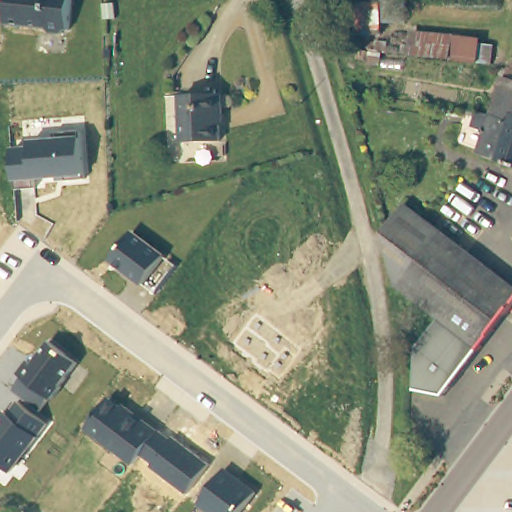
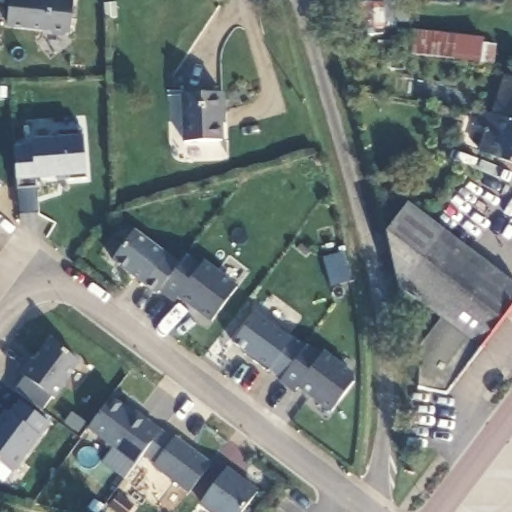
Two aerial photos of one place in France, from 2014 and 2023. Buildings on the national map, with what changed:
unchanged [(67,30),(6,23),(6,0),(70,0),(67,30)]
unchanged [(482,39),(482,43),(493,45),(491,64),(409,57),(410,31),(482,39)]
unchanged [(491,116),(504,78),(512,81),(512,118),(511,123),(491,116)]
unchanged [(221,94),(221,114),(219,114),(220,142),(182,144),(180,96),(221,94)]
unchanged [(472,152),(475,146),(479,147),(491,116),(511,123),(512,118),(512,166),(475,152),(472,152)]
unchanged [(29,147),(28,140),(57,138),(56,133),(81,131),(81,136),(84,175),(36,178),(35,187),(16,188),(14,148),(29,147)]
unchanged [(2,183),(0,186),(0,181),(2,183)]
unchanged [(417,347),(439,318),(396,285),(392,269),(383,232),(402,204),(512,285),(512,307),(447,397),(418,389),(417,347)]
unchanged [(179,264),(157,293),(110,259),(134,230),(179,264)]
new [(179,264),(185,254),(200,265),(203,260),(239,286),(212,324),(177,296),(174,303),(157,293),(179,264)]
new [(303,348),(306,344),(320,355),(323,350),(357,375),(332,412),(297,388),(293,393),(278,382),(280,378),(269,369),(267,372),(231,344),(256,312),(303,348)]
unchanged [(79,363),(53,400),(50,397),(42,408),(16,389),(25,378),(20,374),(30,360),(36,364),(52,342),(79,363)]
unchanged [(158,431),(134,463),(86,429),(112,397),(158,431)]
unchanged [(50,424),(12,472),(0,464),(0,416),(4,410),(11,414),(19,403),(50,424)]
unchanged [(187,491),(152,466),(155,462),(145,455),(162,431),(172,439),(175,437),(210,463),(187,491)]
unchanged [(212,512),(201,502),(227,467),(257,491),(241,512),(212,512)]
demolished [(485,512),(474,512),(478,506),(485,512)]

